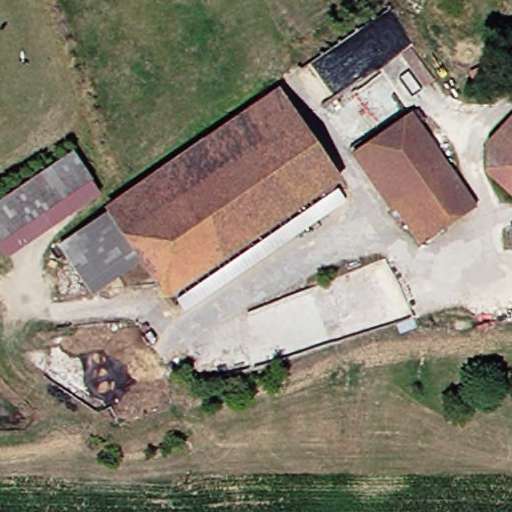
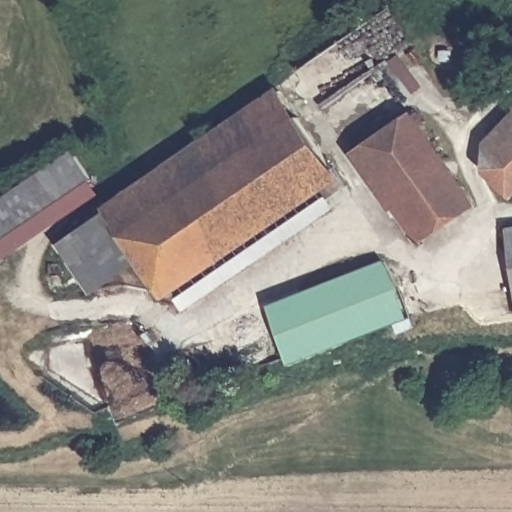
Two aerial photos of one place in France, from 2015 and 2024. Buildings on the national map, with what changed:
unchanged [(161,291),(142,263),(92,296),(58,247),(107,211),(283,91),(343,180),(167,300),(161,291)]
unchanged [(403,215),(357,154),(410,116),(456,178),(403,215)]
unchanged [(512,119),(512,197),(487,172),(488,144),(512,119)]
unchanged [(74,153),(92,182),(0,243),(0,202),(74,153)]
unchanged [(456,178),(476,206),(424,243),(403,215),(456,178)]
new [(512,258),(507,226),(512,225),(512,258)]
new [(270,305),(386,259),(410,318),(294,364),(270,305)]

